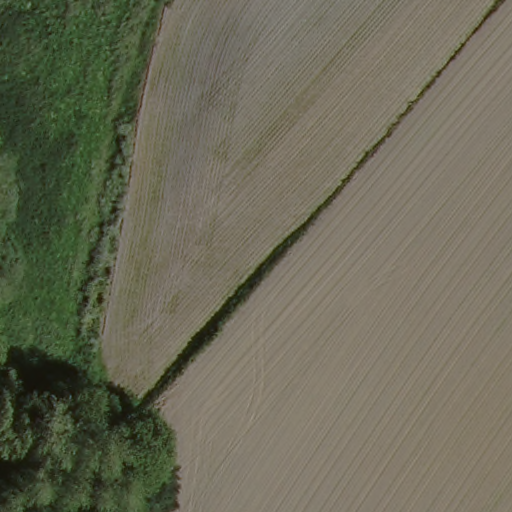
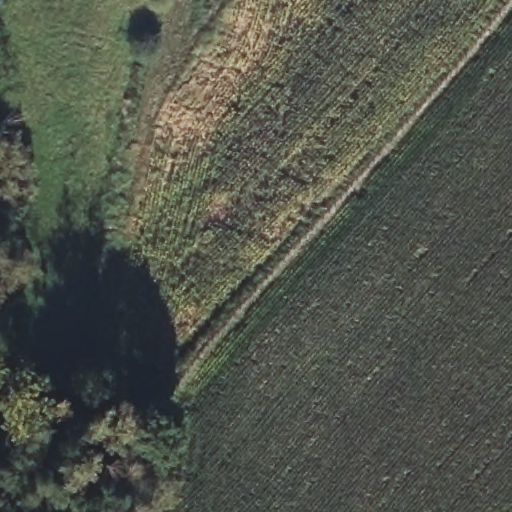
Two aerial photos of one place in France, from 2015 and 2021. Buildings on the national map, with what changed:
[]

